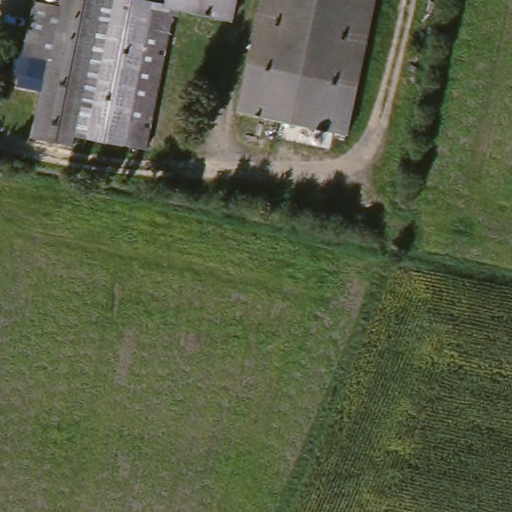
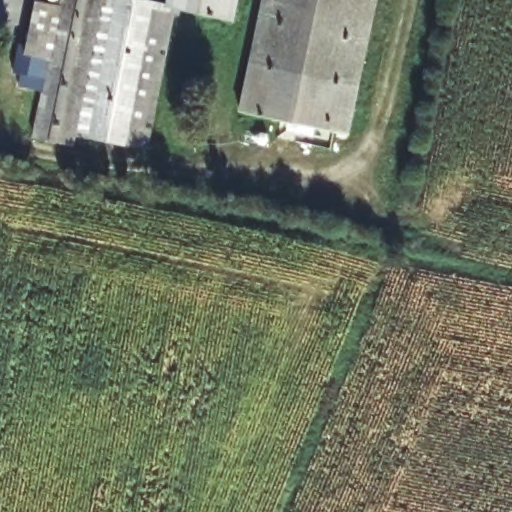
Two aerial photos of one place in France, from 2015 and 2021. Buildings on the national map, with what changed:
unchanged [(36,63),(25,60),(32,10),(61,14),(63,0),(122,0),(121,6),(176,14),(152,151),(95,141),(78,139),(76,148),(35,140),(47,81),(34,80),(36,63)]
unchanged [(168,8),(170,0),(231,0),(227,19),(168,8)]
unchanged [(238,120),(262,0),(379,0),(351,141),(238,120)]

